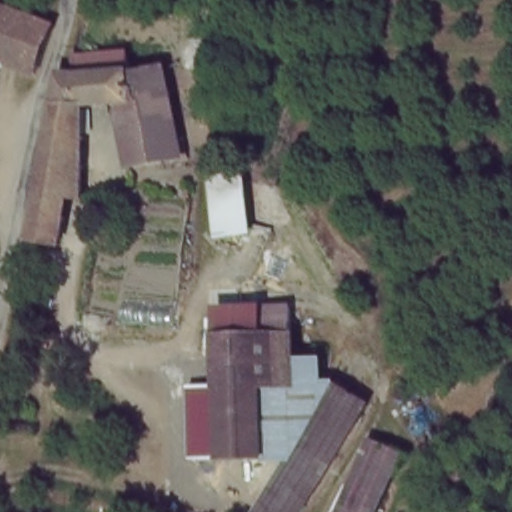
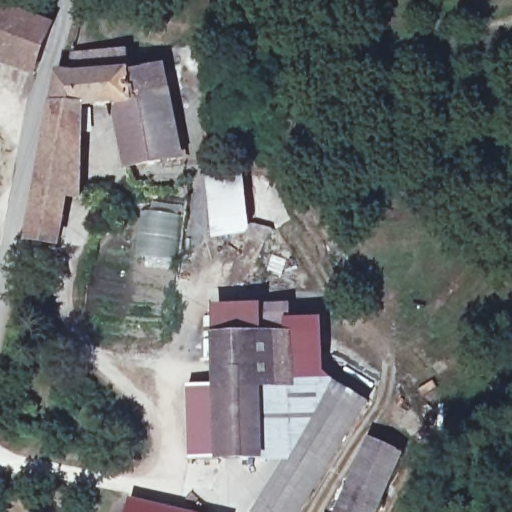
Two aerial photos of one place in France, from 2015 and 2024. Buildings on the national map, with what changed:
unchanged [(40,76),(0,62),(0,6),(49,23),(40,76)]
unchanged [(144,169),(119,171),(116,100),(91,100),(77,199),(62,197),(53,244),(24,239),(45,137),(54,90),(57,69),(70,69),(70,50),(111,57),(115,58),(116,71),(128,72),(164,77),(172,140),(175,166),(144,169)]
unchanged [(252,126),(228,123),(229,104),(255,110),(252,126)]
unchanged [(243,169),(253,236),(216,240),(211,174),(243,169)]
new [(141,206),(184,211),(177,261),(133,257),(141,206)]
unchanged [(281,463),(264,464),(263,457),(193,461),(191,387),(217,387),(214,308),(295,305),(299,359),(325,359),(328,380),(336,379),(335,390),(281,463)]
unchanged [(296,512),(247,512),(246,511),(335,390),(369,413),(296,512)]
unchanged [(336,512),(371,447),(402,462),(376,512),(336,512)]

